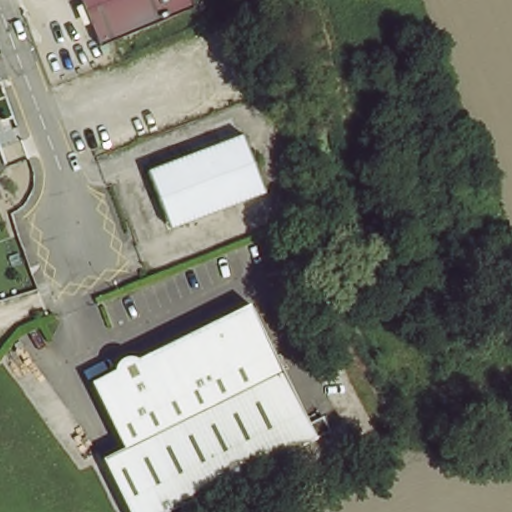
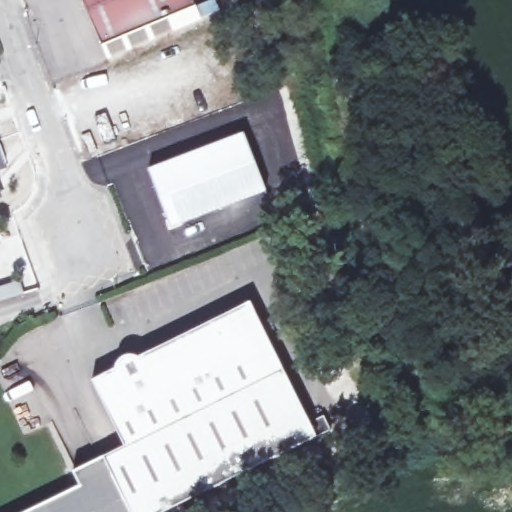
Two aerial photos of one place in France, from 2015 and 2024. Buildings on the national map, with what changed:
unchanged [(79,0),(188,0),(191,5),(99,45),(79,0)]
unchanged [(168,218),(149,168),(245,132),(266,190),(181,222),(171,226),(168,218)]
unchanged [(0,165),(0,158),(3,164),(0,165)]
unchanged [(101,460),(123,449),(90,383),(110,373),(249,307),(308,427),(322,421),(329,435),(169,512),(126,512),(101,460)]
new [(79,486),(73,471),(101,460),(126,512),(25,512),(79,486)]

